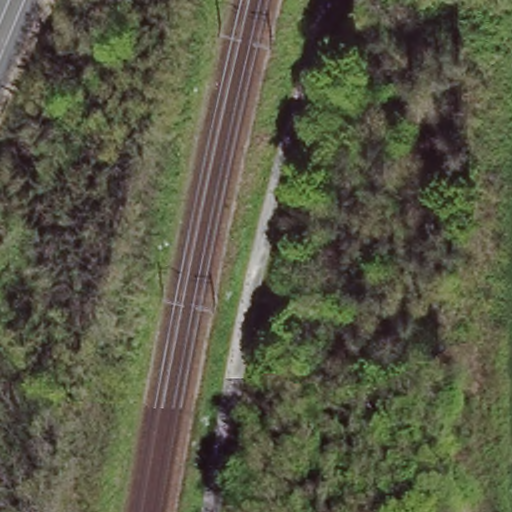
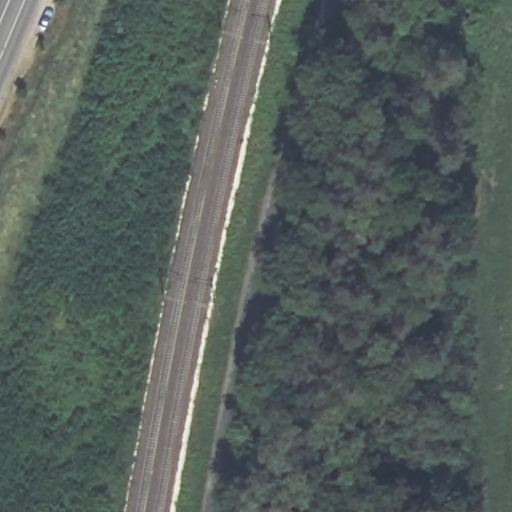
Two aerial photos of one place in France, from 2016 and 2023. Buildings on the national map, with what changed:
[]

